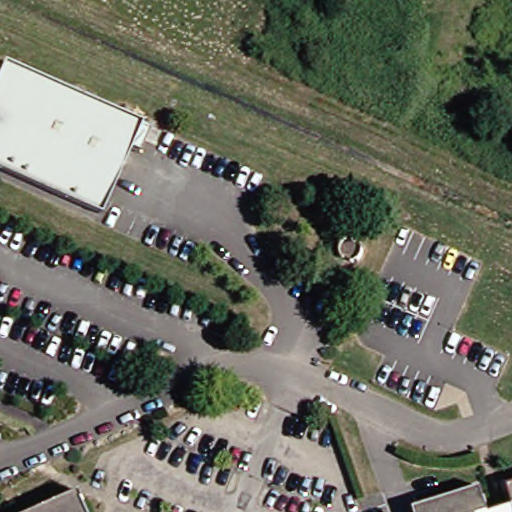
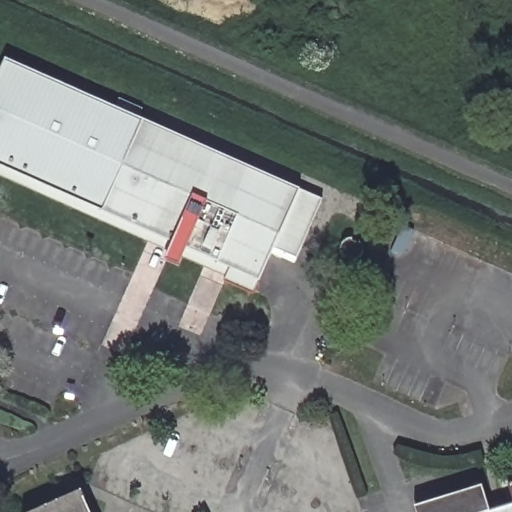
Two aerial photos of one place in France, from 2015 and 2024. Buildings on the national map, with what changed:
unchanged [(1,60),(138,121),(127,145),(97,212),(0,169),(0,62),(1,60)]
new [(300,191),(323,202),(297,258),(275,250),(261,283),(254,296),(225,284),(228,275),(189,252),(180,271),(166,265),(174,245),(97,212),(127,145),(138,121),(300,191)]
unchanged [(350,241),(357,244),(358,242),(360,244),(361,245),(362,246),(362,249),(362,251),(361,253),(361,255),(360,257),(358,259),(357,260),(356,260),(355,262),(353,261),(351,262),(349,262),(350,260),(343,257),(342,258),(341,257),(340,255),(338,255),(339,252),(339,250),(339,248),(340,247),(340,245),(341,244),(341,243),(342,242),(343,241),(345,240),(347,240),(349,239),(351,239),(350,241)]
unchanged [(412,501),(479,479),(487,512),(416,512),(412,501)]
unchanged [(80,487),(91,512),(24,512),(80,487)]
unchanged [(512,512),(502,512),(512,506),(512,512)]

